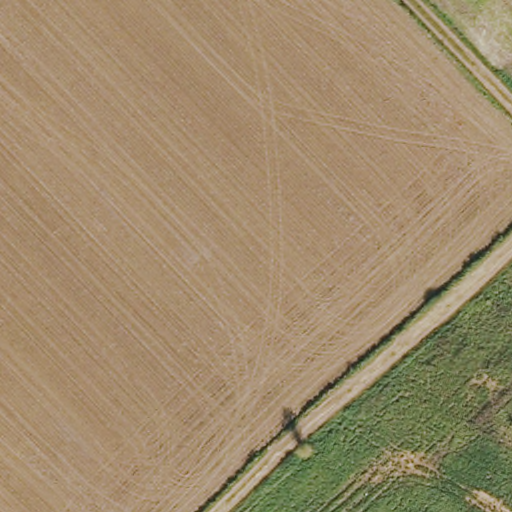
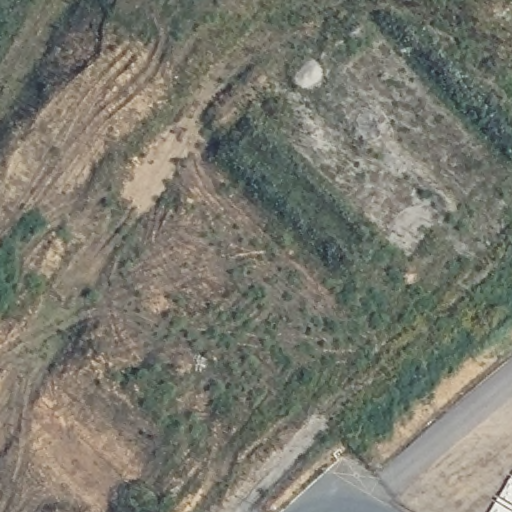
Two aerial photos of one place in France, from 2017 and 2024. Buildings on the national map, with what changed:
[]

